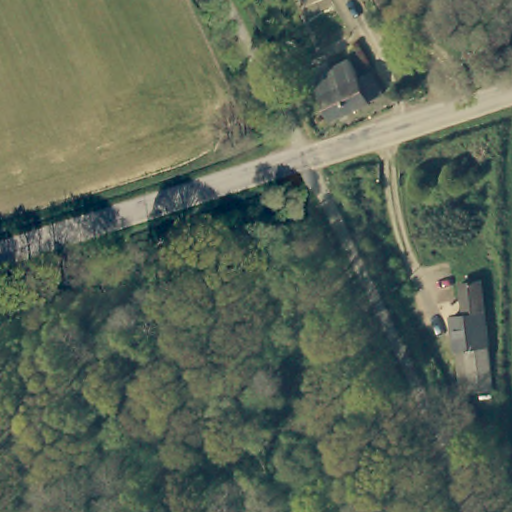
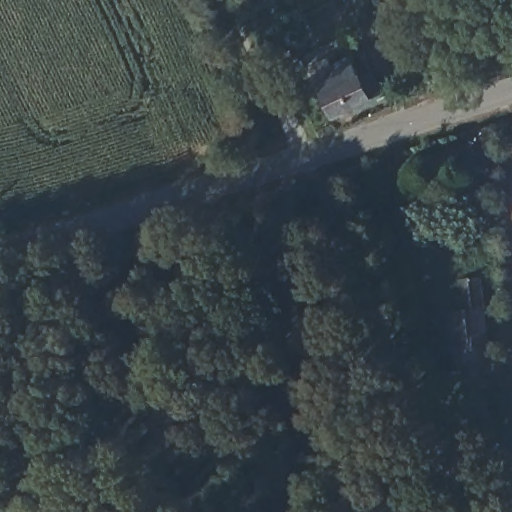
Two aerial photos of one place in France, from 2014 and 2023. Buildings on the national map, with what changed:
unchanged [(349,62),(357,76),(369,71),(380,93),(367,99),(368,102),(329,120),(312,79),(349,62)]
unchanged [(479,275),(493,385),(463,387),(454,313),(464,311),(461,276),(479,275)]

